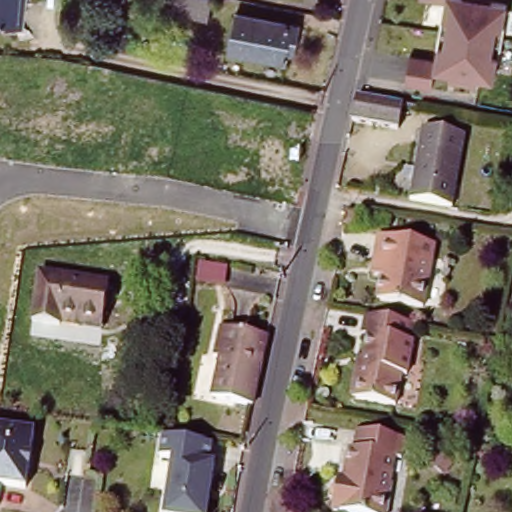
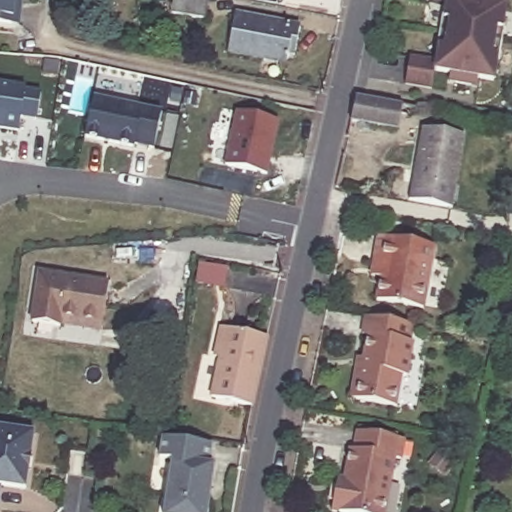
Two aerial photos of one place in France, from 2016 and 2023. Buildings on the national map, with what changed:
unchanged [(0,27),(0,0),(14,0),(12,28),(0,27)]
unchanged [(175,14),(177,0),(211,0),(208,19),(175,14)]
unchanged [(496,76),(435,65),(438,42),(432,39),(435,14),(444,16),(448,0),(485,0),(507,4),(496,76)]
unchanged [(436,0),(448,0),(447,3),(436,0)]
unchanged [(299,31),(295,59),(286,58),(285,67),(227,57),(233,21),(299,31)]
new [(19,116),(18,131),(0,128),(0,82),(26,86),(25,88),(40,91),(35,120),(19,116)]
new [(152,149),(133,144),(133,147),(85,137),(93,97),(161,112),(152,149)]
unchanged [(395,136),(346,127),(352,101),(401,110),(395,136)]
new [(267,173),(224,164),(237,111),(278,121),(267,173)]
unchanged [(405,164),(410,165),(415,166),(420,135),(465,144),(453,204),(409,195),(412,178),(407,177),(402,177),(405,164)]
unchanged [(440,250),(428,312),(381,303),(386,279),(377,278),(379,266),(385,239),(440,250)]
unchanged [(60,326),(60,329),(29,326),(36,276),(105,284),(99,326),(98,331),(60,326)]
unchanged [(360,357),(366,358),(370,340),(363,338),(367,319),(412,327),(409,344),(412,344),(405,380),(401,379),(396,406),(357,399),(351,398),(360,357)]
unchanged [(253,410),(214,401),(223,361),(218,360),(225,330),(270,340),(253,410)]
unchanged [(32,458),(28,458),(27,469),(30,470),(27,490),(4,487),(0,510),(0,509),(0,429),(36,434),(32,458)]
unchanged [(356,453),(360,453),(364,435),(408,443),(405,461),(399,460),(389,512),(337,512),(341,492),(343,482),(350,484),(356,453)]
unchanged [(213,468),(206,512),(164,512),(172,462),(158,461),(162,439),(176,441),(210,446),(206,467),(213,468)]

